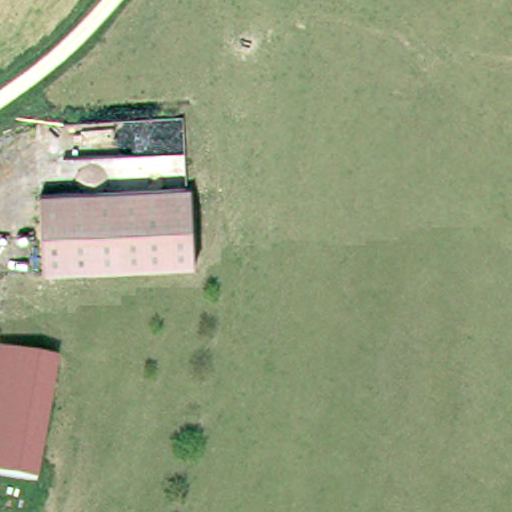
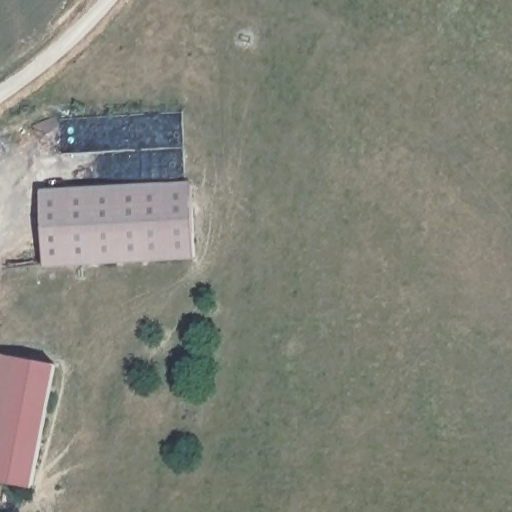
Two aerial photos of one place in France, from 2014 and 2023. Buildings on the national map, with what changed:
unchanged [(195,184),(199,262),(48,269),(43,193),(195,184)]
unchanged [(0,362),(1,357),(59,367),(38,489),(0,482),(0,362)]

